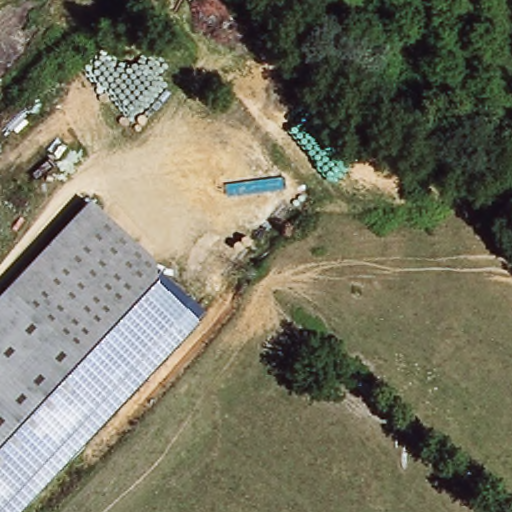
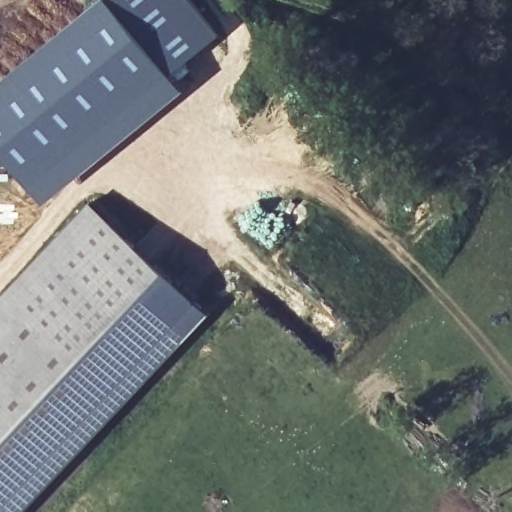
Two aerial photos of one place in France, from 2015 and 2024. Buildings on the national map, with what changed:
new [(189,0),(221,38),(36,191),(0,148),(0,91),(111,0),(189,0)]
unchanged [(95,198),(100,203),(214,311),(132,397),(28,318),(0,350),(0,297),(77,216),(95,198)]
unchanged [(0,350),(28,318),(132,397),(21,512),(0,512),(0,350)]

